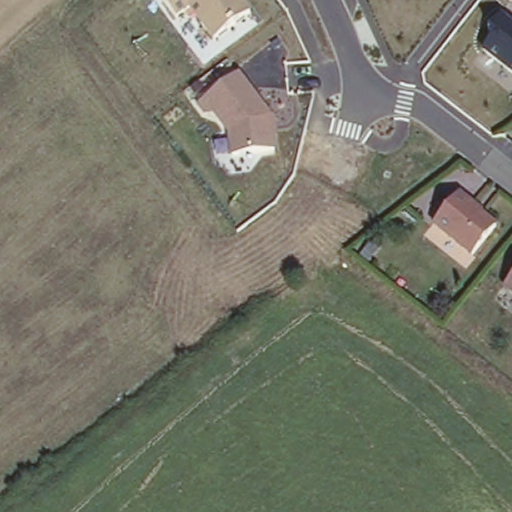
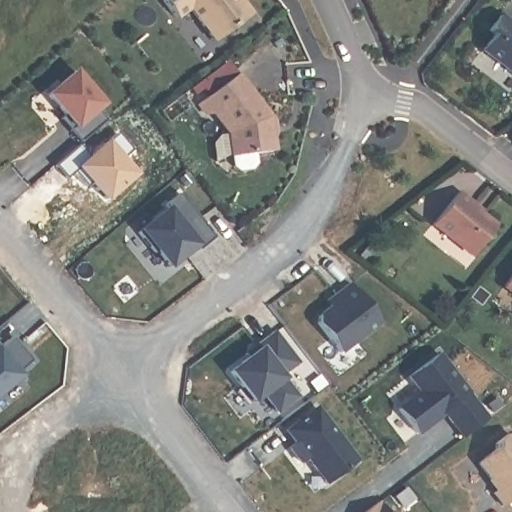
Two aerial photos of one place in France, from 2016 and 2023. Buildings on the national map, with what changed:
unchanged [(216,42),(191,14),(176,22),(163,0),(239,0),(250,14),(216,42)]
unchanged [(493,34),(489,30),(503,14),(512,22),(512,75),(481,51),(493,34)]
new [(102,103),(96,110),(107,122),(82,146),(70,134),(76,127),(48,96),(73,72),(102,103)]
unchanged [(231,161),(228,135),(212,116),(204,119),(196,106),(240,74),(274,121),(275,154),(231,161)]
new [(211,228),(170,263),(142,229),(181,194),(211,228)]
unchanged [(455,199),(494,230),(473,259),(431,228),(455,199)]
unchanged [(512,289),(507,285),(512,277),(512,289)]
new [(365,287),(386,319),(340,347),(320,314),(365,287)]
new [(260,349),(252,340),(269,326),(299,359),(283,373),(300,391),(272,416),(230,371),(260,349)]
new [(406,403),(426,387),(408,360),(434,341),(489,416),(463,435),(446,413),(421,430),(406,403)]
new [(6,342),(18,354),(23,350),(34,361),(0,392),(0,346),(6,342)]
new [(319,405),(359,461),(329,483),(288,428),(319,405)]
new [(512,500),(510,502),(479,463),(512,437),(512,500)]
new [(384,512),(361,512),(375,502),(384,512)]
new [(394,512),(385,512),(391,508),(394,512)]

